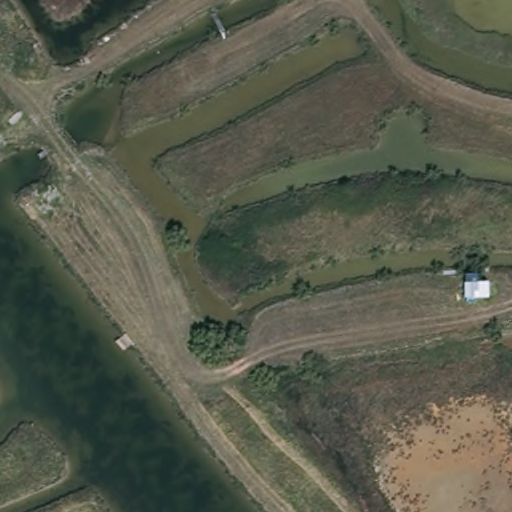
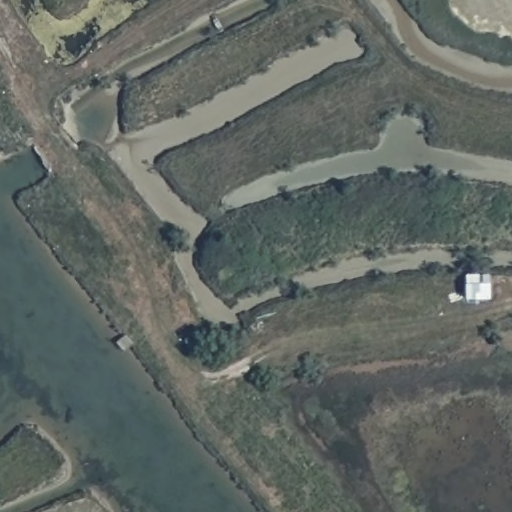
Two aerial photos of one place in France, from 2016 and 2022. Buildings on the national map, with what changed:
unchanged [(497,280),(496,299),(470,302),(470,283),(497,280)]

